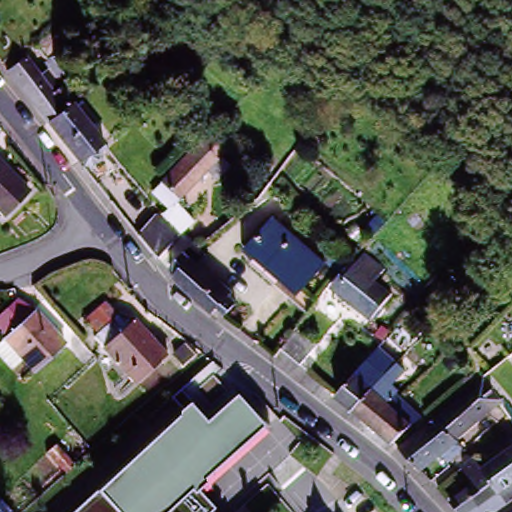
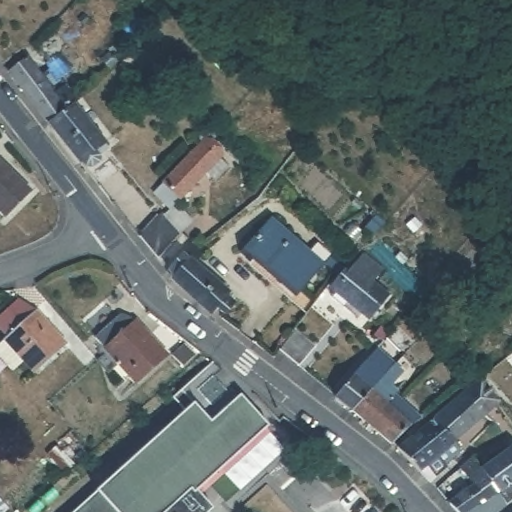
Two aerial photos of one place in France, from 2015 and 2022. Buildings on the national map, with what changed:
unchanged [(40,75),(50,67),(46,62),(42,63),(34,55),(35,54),(34,51),(38,47),(49,58),(56,51),(70,66),(59,77),(66,85),(65,85),(74,97),(71,100),(73,101),(71,102),(69,104),(60,111),(52,119),(47,123),(6,72),(26,57),(40,75)]
unchanged [(153,51),(163,63),(155,69),(146,57),(153,51)]
unchanged [(107,52),(114,60),(108,66),(100,57),(107,52)]
unchanged [(70,153),(64,144),(56,135),(49,126),(47,123),(52,119),(60,111),(69,104),(71,102),(73,101),(103,139),(94,147),(95,149),(96,149),(96,150),(97,151),(97,152),(98,153),(98,154),(98,155),(97,156),(97,157),(96,157),(96,158),(96,159),(95,160),(94,161),(93,162),(92,162),(91,162),(90,162),(89,162),(88,162),(86,162),(85,162),(84,161),(83,160),(82,159),(81,159),(77,162),(70,153)]
unchanged [(163,215),(169,207),(151,190),(161,179),(199,139),(203,135),(212,125),(219,131),(209,141),(220,151),(219,152),(229,161),(214,177),(205,168),(179,196),(174,202),(190,219),(180,230),(179,229),(156,254),(139,233),(159,211),(163,215)]
unchanged [(2,216),(0,214),(0,164),(26,190),(2,216)]
unchanged [(333,275),(327,282),(308,310),(290,296),(296,289),(282,277),(278,281),(239,250),(265,216),(335,272),(333,275)]
unchanged [(377,222),(384,229),(373,242),(365,235),(377,222)]
unchanged [(195,250),(207,260),(199,268),(234,297),(230,302),(238,308),(229,319),(222,313),(219,317),(179,284),(180,281),(172,275),(184,258),(186,260),(195,250)]
unchanged [(358,253),(374,266),(364,278),(382,292),(364,315),(330,288),(358,253)]
unchanged [(129,329),(138,321),(169,355),(141,381),(110,347),(113,345),(95,326),(98,324),(85,310),(100,297),(129,329)]
unchanged [(9,337),(7,336),(10,333),(0,322),(0,314),(18,298),(34,315),(39,309),(69,342),(38,370),(28,359),(19,366),(0,345),(9,337)]
unchanged [(462,313),(448,328),(441,321),(454,306),(462,313)]
unchanged [(507,320),(512,326),(512,333),(507,337),(498,327),(507,320)]
unchanged [(317,340),(300,361),(282,346),(298,325),(317,340)]
unchanged [(174,351),(184,342),(193,351),(183,360),(174,351)]
unchanged [(332,393),(372,347),(377,351),(389,362),(348,406),(332,393)]
unchanged [(398,371),(387,382),(417,408),(385,437),(348,406),(389,362),(398,371)]
unchanged [(441,415),(486,377),(504,399),(460,436),(459,437),(461,439),(467,445),(448,462),(442,455),(424,471),(403,448),(421,433),(441,415)]
unchanged [(95,491),(194,404),(210,421),(240,395),(267,426),(196,492),(210,509),(207,512),(73,512),(95,491)]
unchanged [(68,472),(44,450),(56,440),(76,465),(68,472)]
unchanged [(445,502),(471,485),(456,467),(468,456),(479,468),(493,456),(508,443),(512,448),(512,493),(502,500),(485,512),(454,512),(445,502)]
unchanged [(512,509),(512,512),(506,512),(512,509)]

